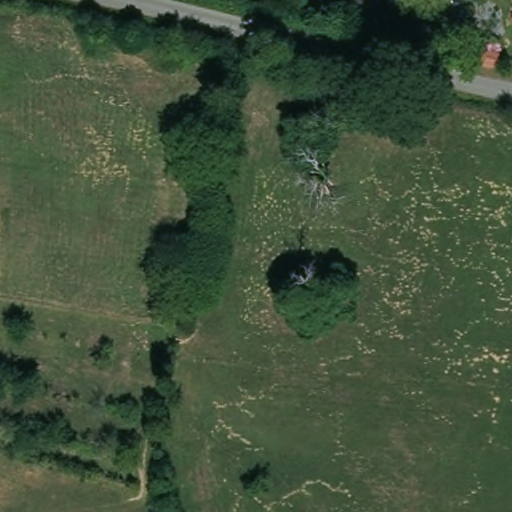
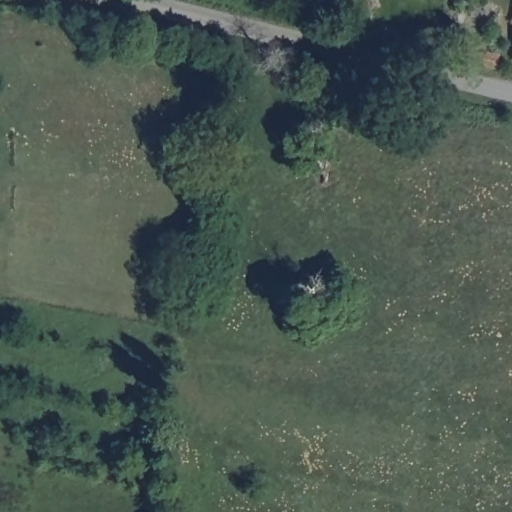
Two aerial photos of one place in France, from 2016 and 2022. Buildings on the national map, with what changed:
unchanged [(477,65),(480,48),(504,52),(500,70),(500,71),(477,67),(477,65)]

